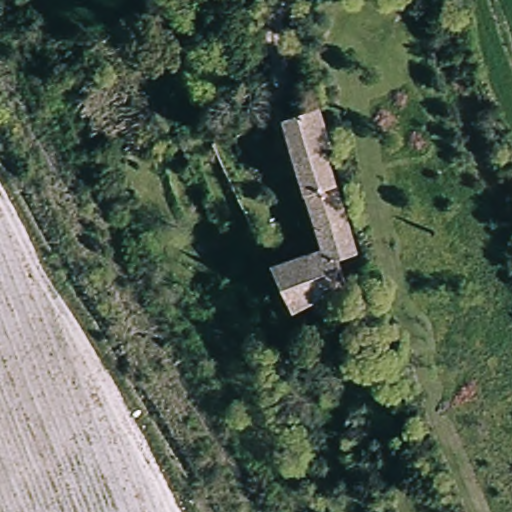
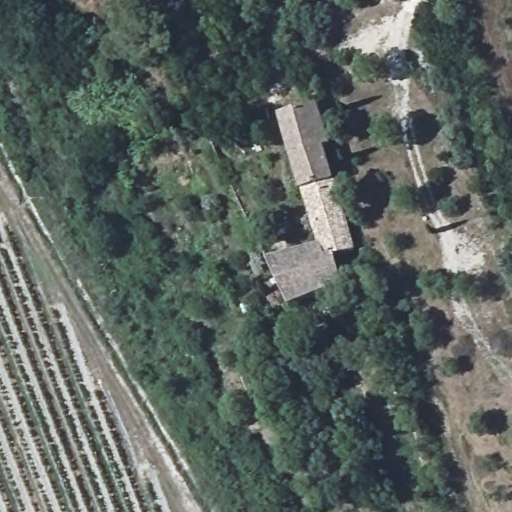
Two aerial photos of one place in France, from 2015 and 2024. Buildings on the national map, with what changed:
unchanged [(350,287),(287,313),(286,312),(266,267),(318,246),(278,124),(314,110),(329,150),(324,160),(367,280),(350,287)]

